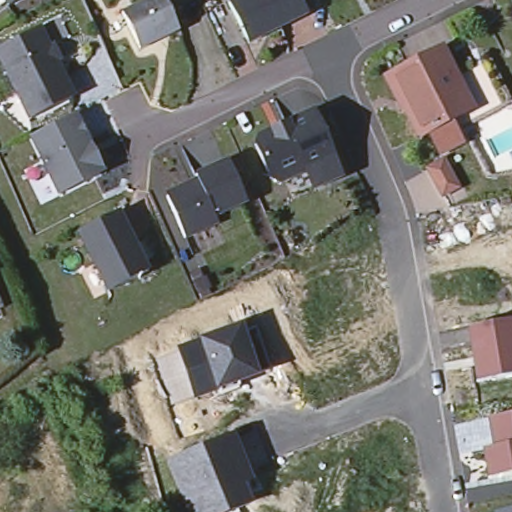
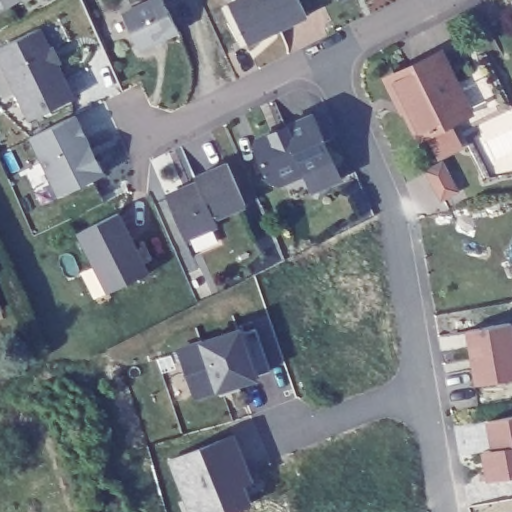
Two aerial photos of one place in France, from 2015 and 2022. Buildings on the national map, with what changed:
unchanged [(0,3),(0,0),(18,0),(4,9),(0,3)]
unchanged [(119,13),(145,0),(160,0),(174,30),(137,49),(119,13)]
unchanged [(225,3),(231,0),(295,0),(302,15),(250,41),(242,37),(225,3)]
unchanged [(26,119),(3,70),(0,72),(0,44),(35,27),(45,48),(49,46),(55,59),(51,61),(69,97),(26,119)]
unchanged [(470,112),(419,137),(407,110),(404,112),(387,77),(394,74),(441,51),(470,112)]
unchanged [(280,180),(275,182),(265,179),(250,145),(253,139),(264,134),(272,137),(284,132),(281,127),(309,115),(336,177),(288,199),(280,180)]
unchanged [(27,140),(70,119),(84,148),(80,150),(86,162),(93,164),(97,174),(95,180),(56,198),(27,140)]
unchanged [(190,182),(187,176),(219,162),(240,210),(177,237),(158,197),(190,182)]
unchanged [(75,232),(114,212),(142,270),(104,290),(75,232)]
unchanged [(512,321),(512,324),(512,373),(474,381),(466,331),(512,321)]
unchanged [(175,348),(197,341),(242,327),(259,377),(215,393),(192,399),(175,348)]
unchanged [(492,448),(486,421),(512,416),(512,472),(488,478),(484,451),(492,448)]
unchanged [(234,433),(254,478),(245,482),(251,501),(224,512),(190,512),(167,457),(234,433)]
unchanged [(512,512),(505,512),(512,511),(512,512)]

